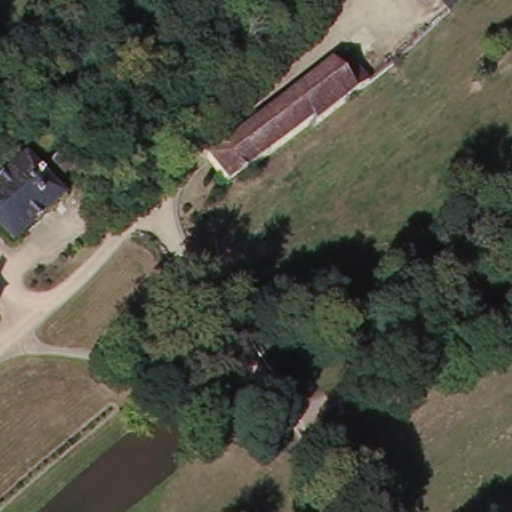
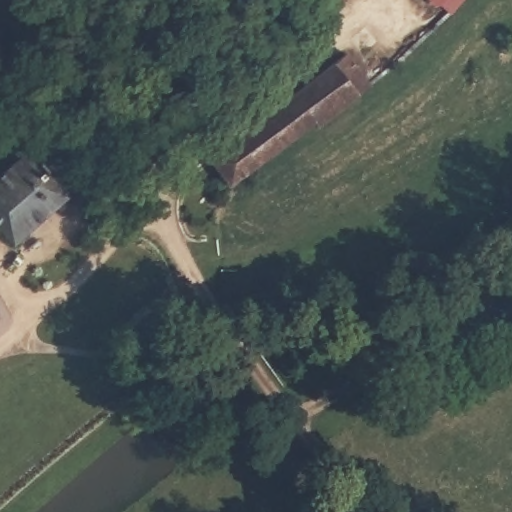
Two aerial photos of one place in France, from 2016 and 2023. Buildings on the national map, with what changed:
unchanged [(309,11),(318,0),(348,0),(330,20),(309,11)]
unchanged [(450,0),(444,8),(432,0),(450,0)]
unchanged [(331,61),(361,98),(308,143),(305,137),(225,202),(203,173),(200,169),(331,61)]
unchanged [(105,177),(96,166),(115,150),(124,160),(105,177)]
unchanged [(0,235),(0,179),(27,154),(67,199),(14,249),(0,235)]
unchanged [(457,307),(469,330),(438,348),(425,325),(457,307)]

